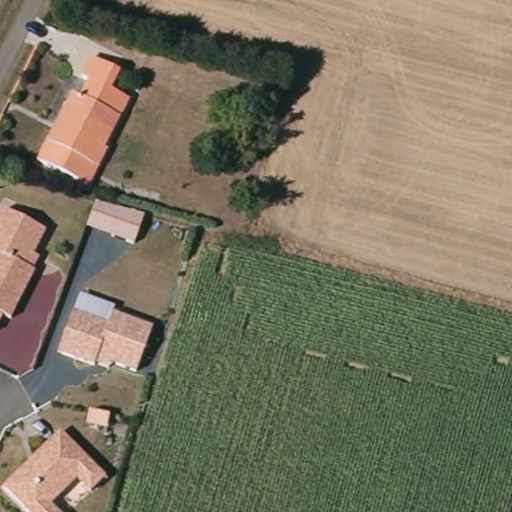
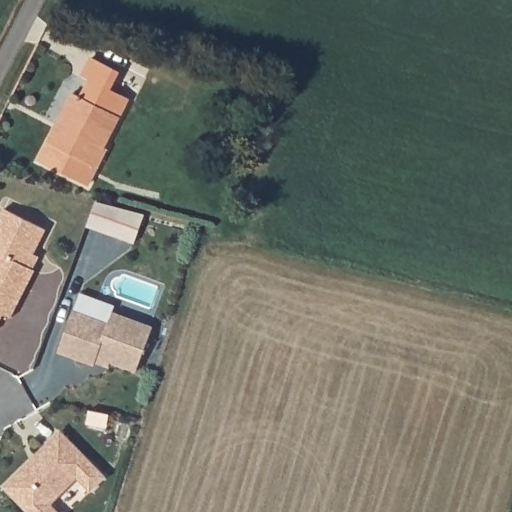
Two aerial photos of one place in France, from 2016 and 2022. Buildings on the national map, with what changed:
unchanged [(120,74),(113,91),(130,99),(106,149),(113,153),(94,192),(43,165),(90,60),(120,74)]
unchanged [(96,202),(144,216),(134,245),(86,229),(96,202)]
unchanged [(48,232),(34,264),(39,268),(13,317),(0,311),(0,216),(3,211),(48,232)]
unchanged [(136,373),(111,364),(109,369),(96,363),(94,367),(59,353),(80,293),(115,305),(112,312),(151,327),(136,373)]
unchanged [(0,321),(0,311),(4,313),(0,321)]
unchanged [(107,475),(90,493),(76,482),(52,506),(59,512),(30,512),(3,486),(60,432),(107,475)]

